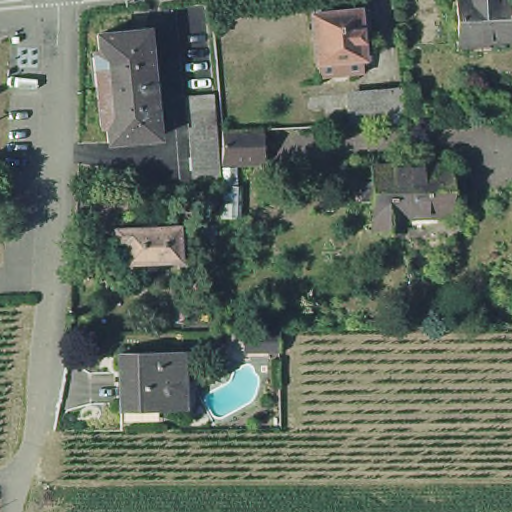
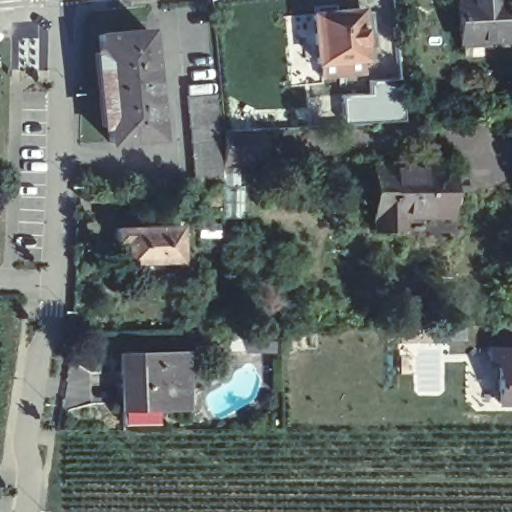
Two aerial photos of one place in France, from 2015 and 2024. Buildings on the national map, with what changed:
unchanged [(314,1),(323,0),(333,0),(334,5),(359,3),(360,12),(370,12),(372,39),(363,40),(363,51),(360,52),(360,59),(320,63),(320,56),(315,56),(310,7),(314,7),(314,1)]
unchanged [(465,36),(462,0),(512,0),(512,34),(465,36)]
unchanged [(146,28),(155,137),(107,141),(98,31),(146,28)]
unchanged [(401,87),(405,118),(356,120),(355,90),(401,87)]
unchanged [(504,96),(505,114),(475,115),(475,97),(504,96)]
unchanged [(343,115),(343,123),(335,124),(334,121),(327,121),(327,115),(343,115)]
unchanged [(266,141),(267,168),(238,167),(241,220),(224,221),(222,143),(266,141)]
unchanged [(475,219),(466,226),(416,227),(416,216),(373,217),(372,190),(361,190),(360,170),(372,170),(372,155),(449,155),(449,151),(460,151),(460,167),(461,179),(469,179),(468,190),(461,190),(460,196),(450,196),(450,204),(475,204),(475,219)]
unchanged [(183,224),(185,258),(130,261),(130,240),(120,240),(120,227),(183,224)]
unchanged [(278,328),(277,350),(276,350),(256,350),(255,329),(278,328)]
unchanged [(125,343),(190,346),(188,405),(165,403),(165,418),(122,416),(125,343)]
new [(512,347),(512,410),(500,410),(500,371),(490,371),(490,347),(512,347)]

